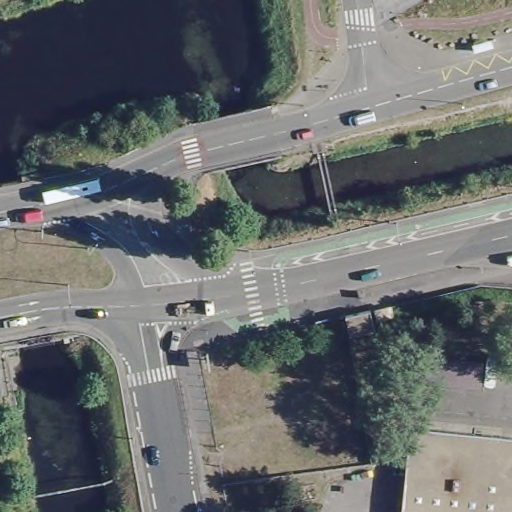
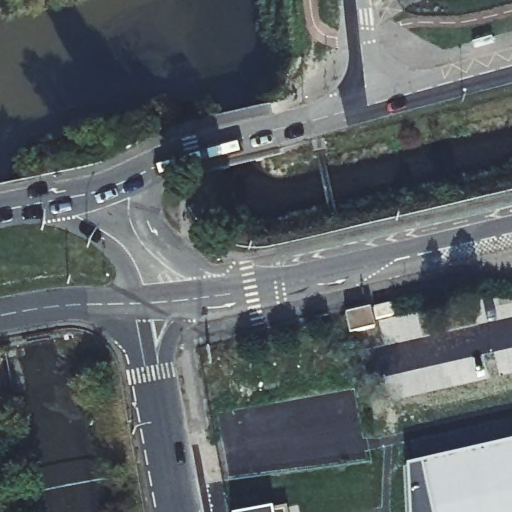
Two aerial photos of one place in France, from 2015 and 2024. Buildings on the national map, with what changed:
unchanged [(345,321),(370,315),(374,333),(348,339),(345,321)]
unchanged [(412,382),(415,350),(485,360),(484,388),(412,382)]
demolished [(227,366),(245,362),(249,381),(230,385),(227,366)]
demolished [(512,440),(512,512),(397,512),(405,431),(512,440)]
new [(405,468),(512,443),(512,512),(408,512),(405,468)]
new [(285,508),(286,512),(275,512),(277,510),(285,508)]

